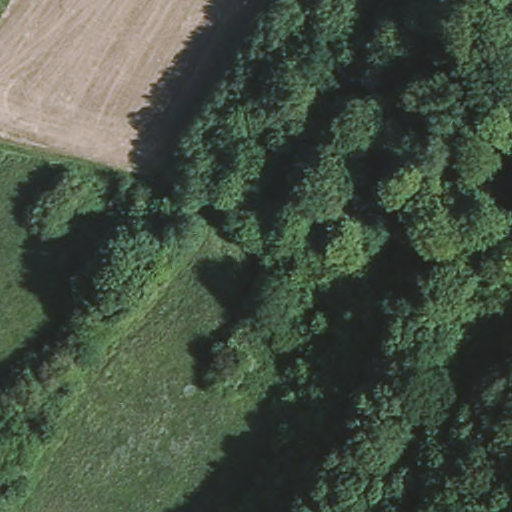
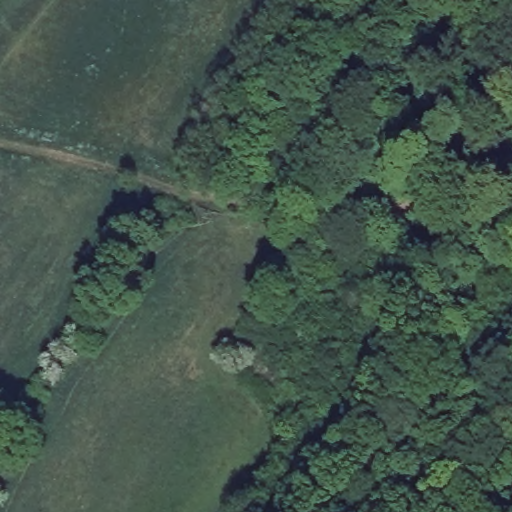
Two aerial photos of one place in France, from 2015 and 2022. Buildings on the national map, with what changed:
[]

